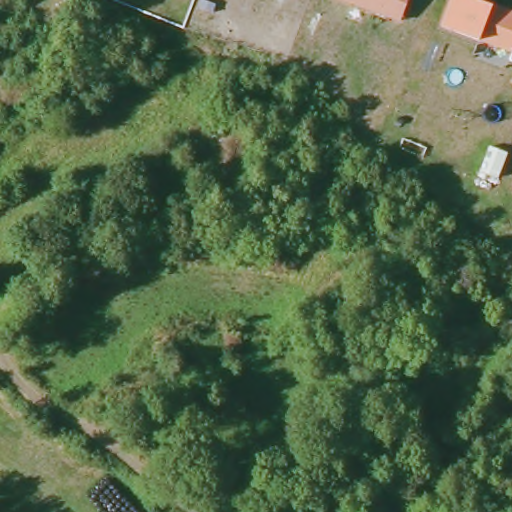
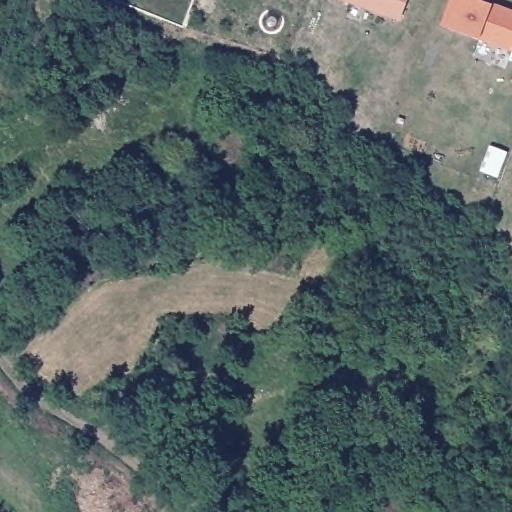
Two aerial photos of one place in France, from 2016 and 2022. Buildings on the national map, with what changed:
unchanged [(342,0),(405,0),(399,20),(342,0)]
unchanged [(481,0),(512,10),(512,62),(507,60),(510,53),(474,40),(437,24),(445,0),(481,0)]

